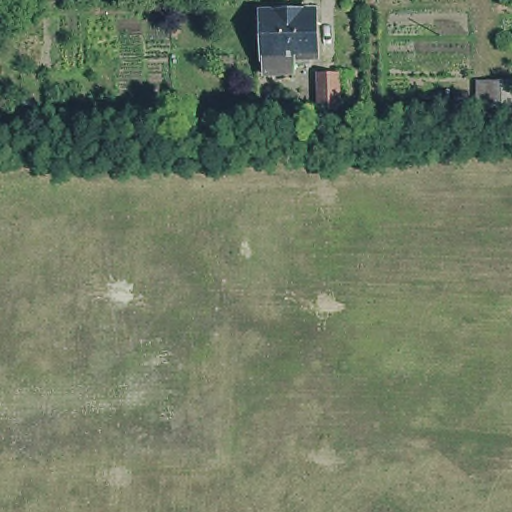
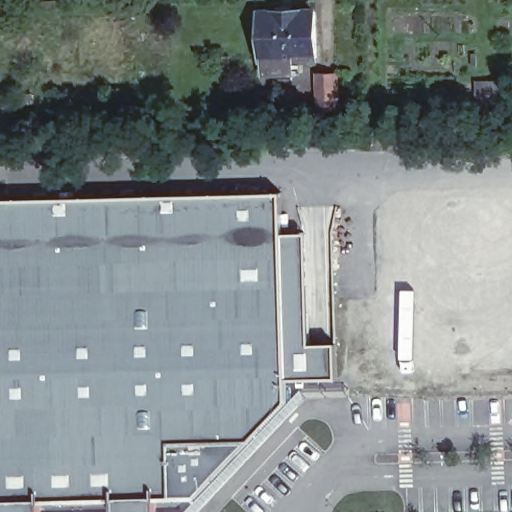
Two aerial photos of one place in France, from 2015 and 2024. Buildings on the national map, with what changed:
unchanged [(267,64),(266,48),(263,48),(261,2),(316,1),(318,46),(294,47),(294,64),(267,64)]
unchanged [(319,74),(337,74),(340,111),(320,112),(319,74)]
new [(283,234),(287,380),(287,401),(196,499),(0,502),(0,199),(282,192),(283,234)]
new [(337,379),(287,380),(283,234),(307,233),(310,344),(335,343),(337,379)]

